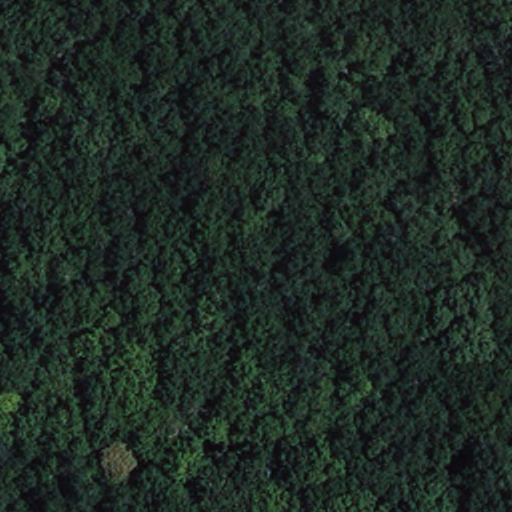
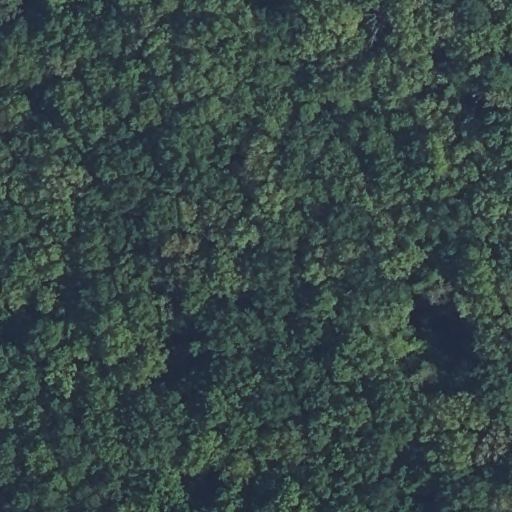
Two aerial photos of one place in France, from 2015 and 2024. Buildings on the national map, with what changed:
[]

